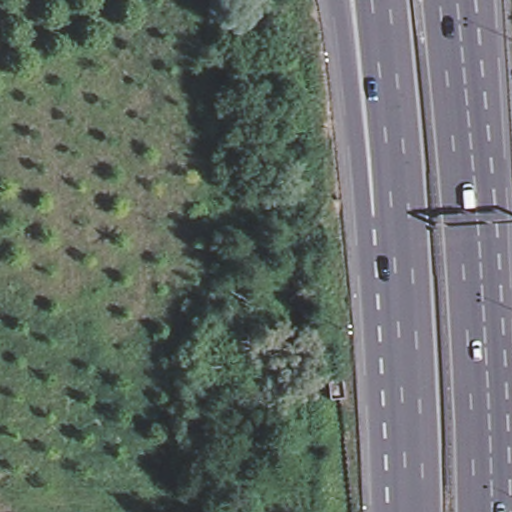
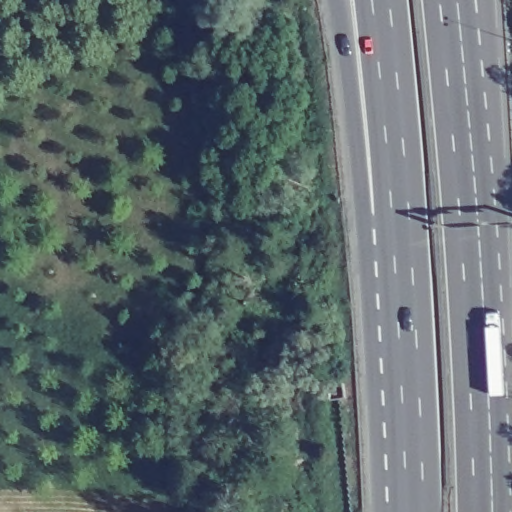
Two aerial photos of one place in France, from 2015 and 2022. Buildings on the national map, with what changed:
[]

